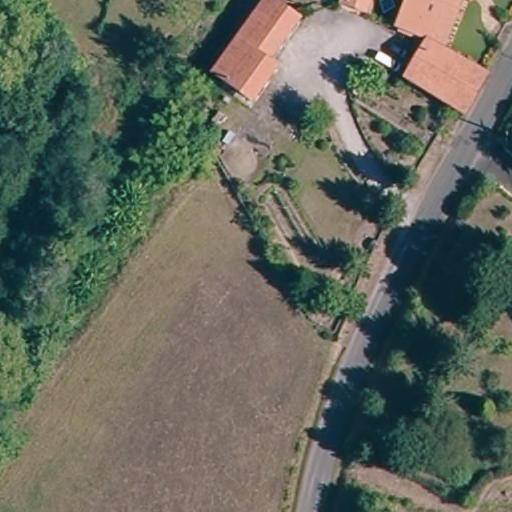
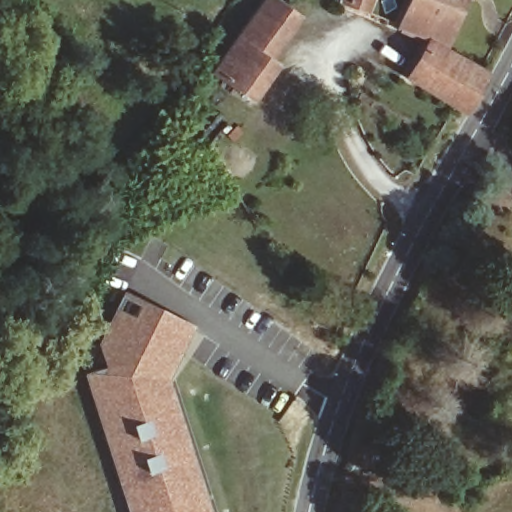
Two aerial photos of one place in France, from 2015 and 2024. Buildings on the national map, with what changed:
unchanged [(281,64),(255,101),(227,81),(218,75),(226,63),(269,0),(278,0),(280,1),(302,16),(273,58),(281,64)]
unchanged [(351,0),(364,0),(362,5),(351,0)]
unchanged [(399,21),(407,0),(462,0),(447,40),(399,21)]
unchanged [(468,105),(411,70),(429,34),(488,69),(468,105)]
new [(84,377),(126,291),(197,328),(172,379),(214,512),(129,512),(84,377)]

